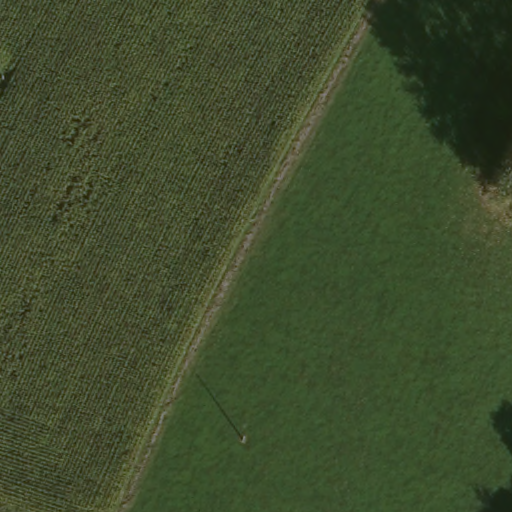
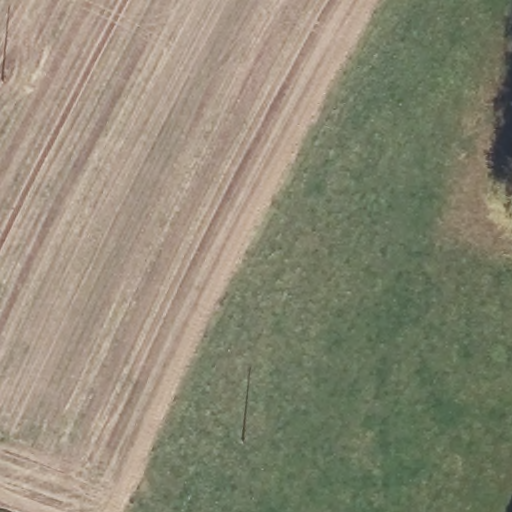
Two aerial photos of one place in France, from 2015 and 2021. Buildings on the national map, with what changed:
[]

